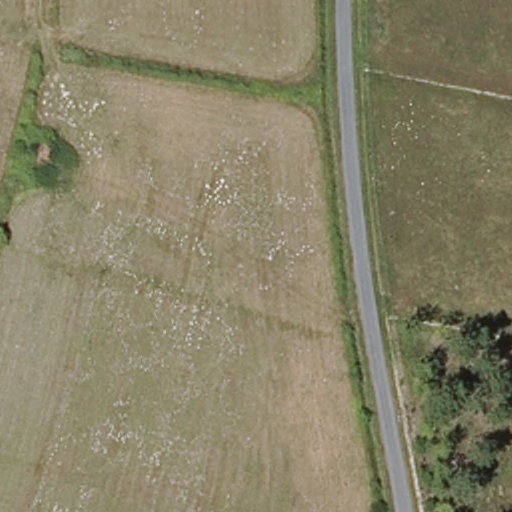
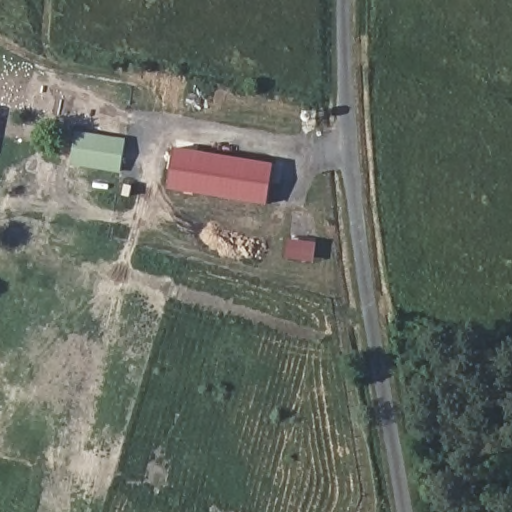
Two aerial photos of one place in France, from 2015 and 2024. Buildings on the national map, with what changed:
new [(77,133),(126,142),(121,173),(71,165),(77,133)]
new [(173,147),(271,165),(265,206),(166,187),(173,147)]

